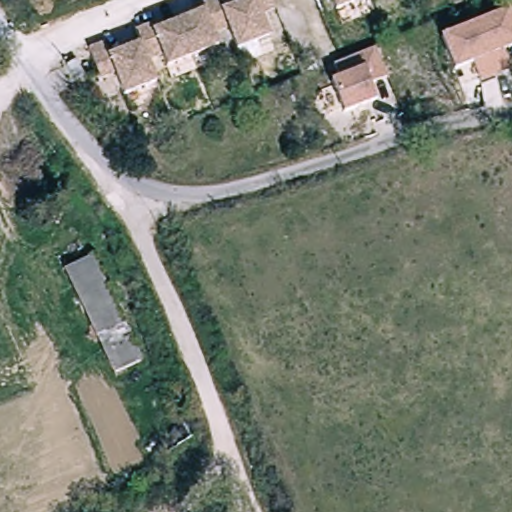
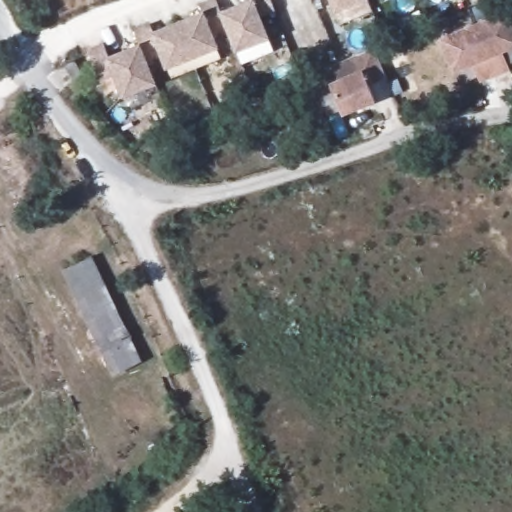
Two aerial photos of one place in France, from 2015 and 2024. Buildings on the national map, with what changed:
unchanged [(217,47),(192,56),(179,20),(204,11),(202,5),(213,0),(218,0),(222,11),(229,29),(212,35),(217,47)]
unchanged [(271,0),(276,11),(261,17),(269,39),(237,50),(229,29),(222,11),(253,0),(271,0)]
unchanged [(333,0),(360,0),(336,9),(333,0)]
unchanged [(512,47),(454,70),(442,36),(509,10),(512,20),(512,47)]
unchanged [(167,66),(163,54),(147,60),(141,41),(136,29),(152,22),(154,30),(179,20),(192,56),(167,66)]
unchanged [(105,40),(109,53),(141,41),(147,60),(154,81),(123,92),(115,70),(100,76),(89,45),(105,40)]
unchanged [(387,77),(370,86),(377,101),(344,115),(331,81),(340,76),(335,65),(374,47),(387,77)]
unchanged [(77,60),(83,54),(94,67),(88,72),(77,60)]
unchanged [(69,271),(99,257),(142,362),(114,374),(69,271)]

